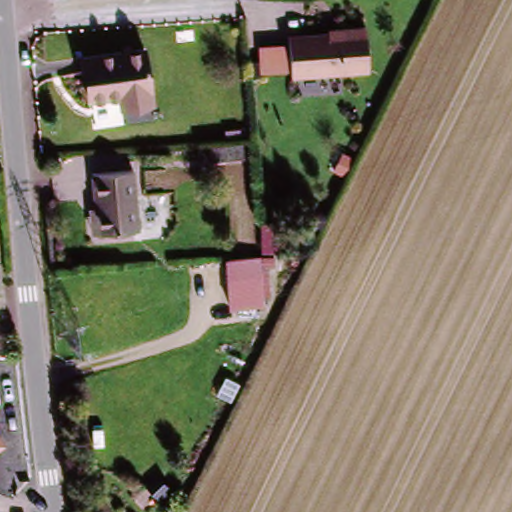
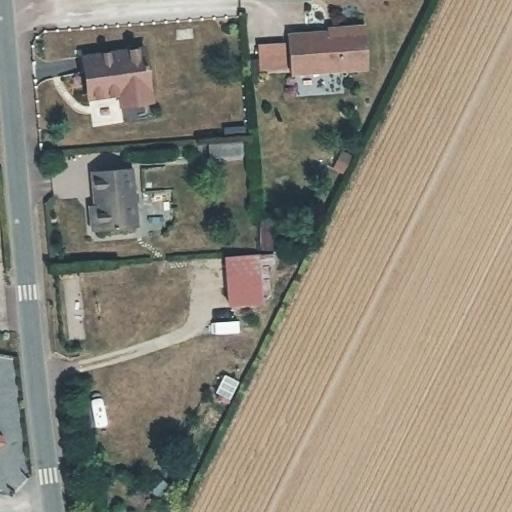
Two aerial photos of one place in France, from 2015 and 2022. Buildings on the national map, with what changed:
unchanged [(337,31),(337,28),(367,26),(369,68),(292,70),(291,33),(337,31)]
unchanged [(122,107),(122,103),(121,96),(91,99),(86,58),(147,52),(151,93),(152,100),(152,104),(122,107)]
unchanged [(92,210),(97,210),(95,175),(133,173),(136,230),(98,232),(94,233),(92,210)]
unchanged [(265,255),(268,302),(234,304),(231,257),(265,255)]
unchanged [(0,447),(0,438),(4,444),(0,447)]

